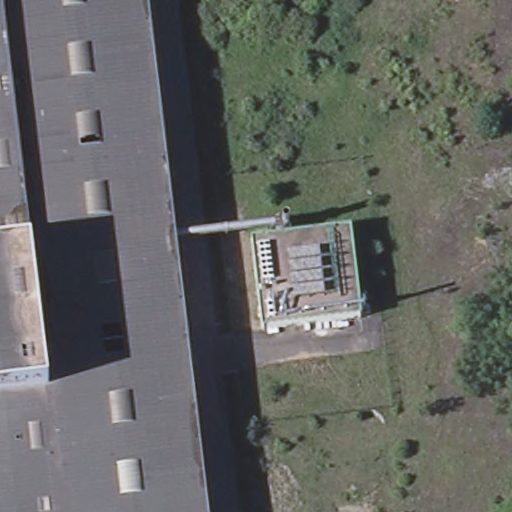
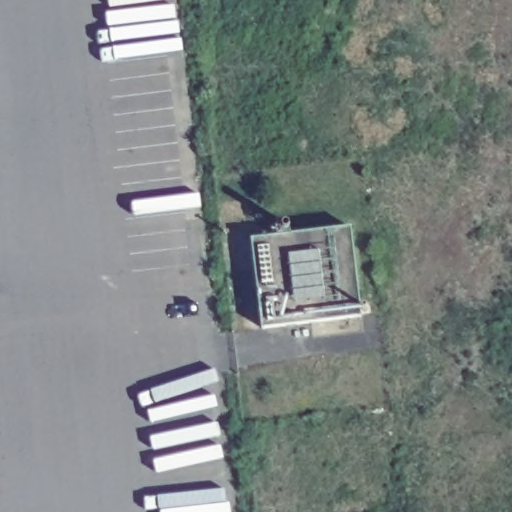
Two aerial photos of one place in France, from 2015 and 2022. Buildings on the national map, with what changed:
demolished [(0,0),(151,0),(212,512),(0,512),(0,0)]
new [(351,227),(361,317),(262,327),(253,240),(351,227)]

